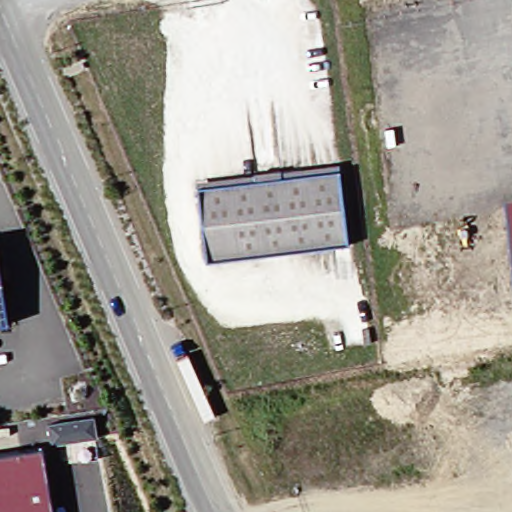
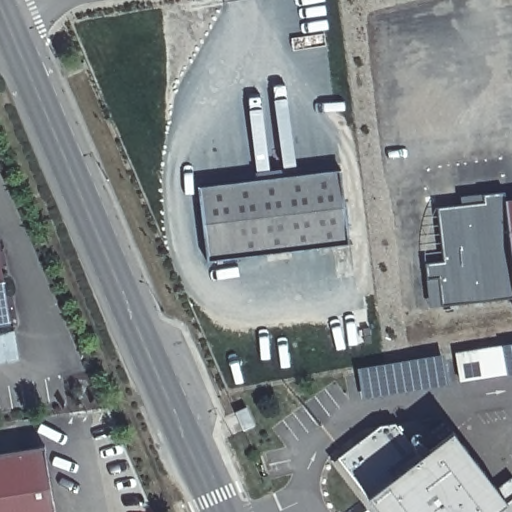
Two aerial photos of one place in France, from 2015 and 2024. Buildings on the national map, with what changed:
unchanged [(345,167),(354,242),(210,257),(202,182),(345,167)]
new [(426,263),(446,261),(439,208),(485,203),(485,195),(505,193),(506,202),(512,249),(512,296),(430,308),(426,263)]
unchanged [(0,318),(0,251),(10,317),(0,318)]
new [(460,385),(455,353),(512,343),(512,376),(460,385)]
new [(362,400),(357,368),(445,353),(450,385),(362,400)]
new [(396,424),(423,457),(455,432),(506,500),(512,496),(512,512),(370,512),(332,463),(380,426),(396,424)]
new [(53,512),(0,512),(0,455),(43,447),(53,512)]

